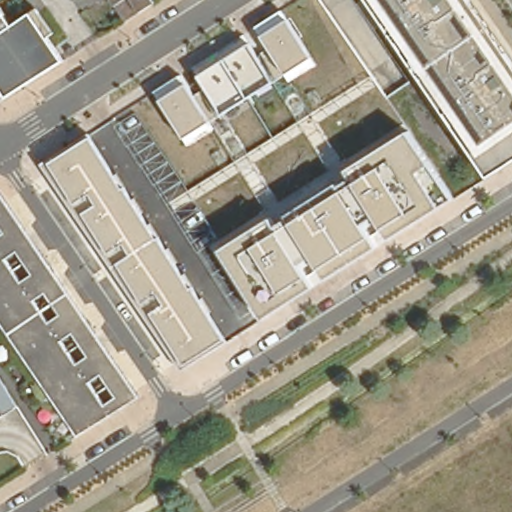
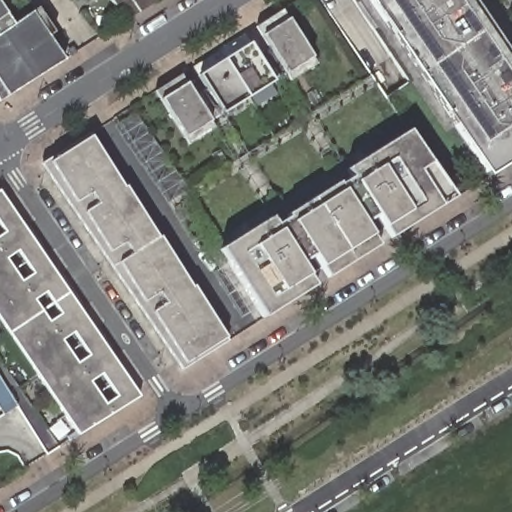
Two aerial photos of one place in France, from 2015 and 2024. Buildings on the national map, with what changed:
unchanged [(122,22),(109,0),(154,0),(154,1),(122,22)]
unchanged [(368,0),(470,0),(512,60),(512,161),(487,177),(368,0)]
unchanged [(0,89),(0,7),(12,25),(35,10),(51,32),(46,37),(64,62),(5,96),(0,89)]
unchanged [(190,145),(186,138),(160,102),(155,92),(181,75),(186,84),(195,99),(206,91),(197,76),(193,69),(245,35),(251,43),(260,59),(270,51),(262,36),(255,27),(282,10),(287,19),(312,57),(315,65),(290,81),(287,75),(275,82),(224,114),(210,122),(215,129),(190,145)]
unchanged [(450,197),(438,206),(389,237),(382,227),(375,217),(364,225),(370,236),(376,246),(325,278),(319,267),(312,257),(300,266),(306,277),(313,287),(263,317),(220,251),(271,218),(276,225),(286,219),(285,216),(338,183),(340,186),(352,178),(346,170),(408,132),(430,164),(450,197)]
unchanged [(225,342),(182,371),(40,165),(48,162),(91,137),(115,176),(117,174),(125,187),(133,199),(135,197),(144,211),(141,214),(149,226),(152,223),(161,237),(169,251),(171,249),(180,263),(177,265),(184,277),(186,274),(194,287),(202,301),(204,297),(213,312),(211,315),(225,338),(225,342)]
unchanged [(0,323),(0,193),(140,397),(76,436),(0,323)]
unchanged [(0,379),(17,406),(0,417),(0,379)]

